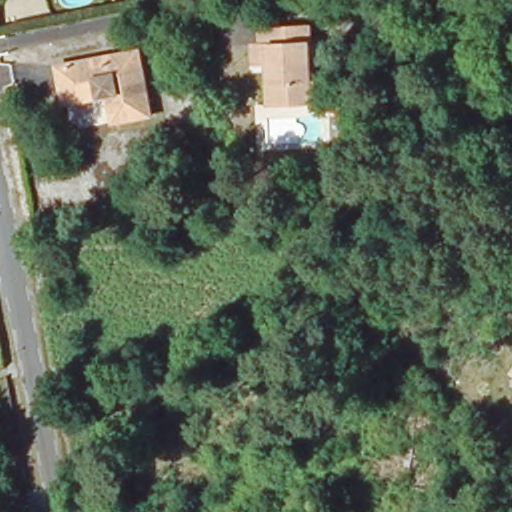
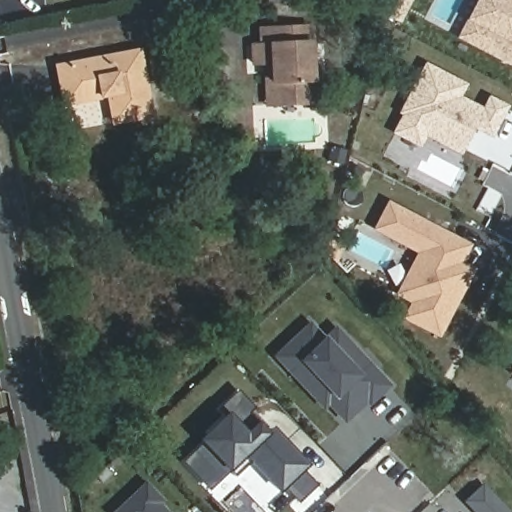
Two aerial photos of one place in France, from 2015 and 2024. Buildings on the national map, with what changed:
new [(456,39),(477,0),(512,0),(512,68),(456,39)]
unchanged [(264,65),(253,66),(252,45),(260,45),(259,30),(310,28),(313,104),(273,106),(266,106),(264,65)]
unchanged [(145,116),(108,122),(103,98),(58,105),(53,67),(134,52),(145,116)]
new [(425,66),(467,85),(460,98),(483,107),(489,98),(509,107),(493,139),(474,131),(462,156),(426,138),(421,148),(393,134),(425,66)]
new [(466,248),(462,253),(459,260),(472,267),(438,330),(406,314),(415,298),(401,291),(424,247),(410,240),(406,247),(374,230),(387,206),(456,243),(466,248)]
new [(342,421),(324,403),(320,407),(289,375),(274,359),(306,327),(321,342),(332,332),(384,387),(366,404),(363,401),(355,409),(342,421)]
unchanged [(511,373),(512,371),(512,374),(511,373)]
new [(213,436),(209,433),(227,416),(220,409),(238,394),(252,408),(246,414),(265,434),(271,429),(306,466),(301,471),(311,482),(295,497),(285,485),(280,491),(252,462),(236,477),(229,470),(209,488),(185,463),(213,436)]
new [(482,487),(506,512),(475,512),(466,502),(482,487)]
new [(159,503),(156,506),(162,512),(119,512),(145,488),(159,503)]

